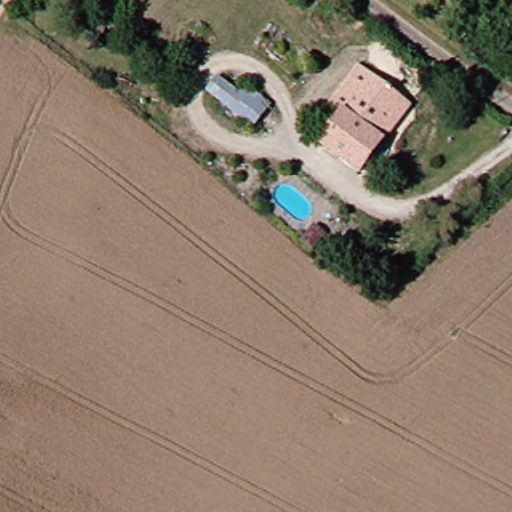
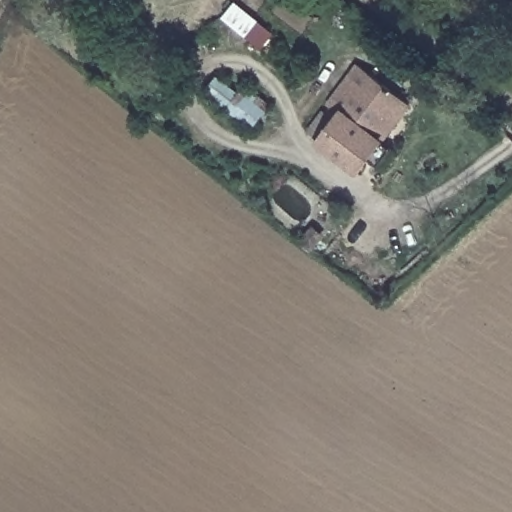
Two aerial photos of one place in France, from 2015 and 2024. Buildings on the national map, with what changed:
unchanged [(325,110),(365,64),(407,102),(384,138),(346,111),(338,123),(325,110)]
unchanged [(223,76),(242,92),(251,84),(276,105),(257,129),(211,91),(223,76)]
unchanged [(338,123),(346,111),(384,138),(361,172),(323,144),(338,123)]

